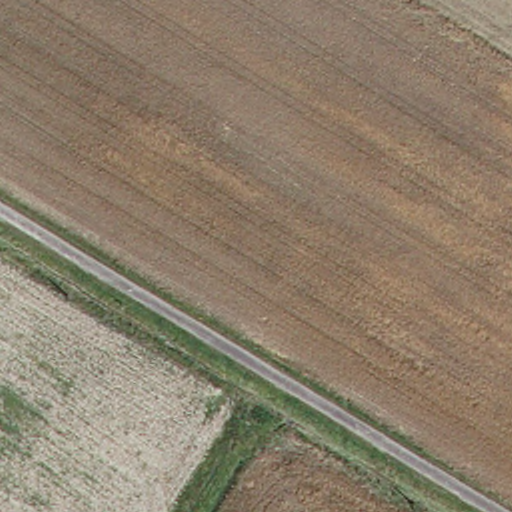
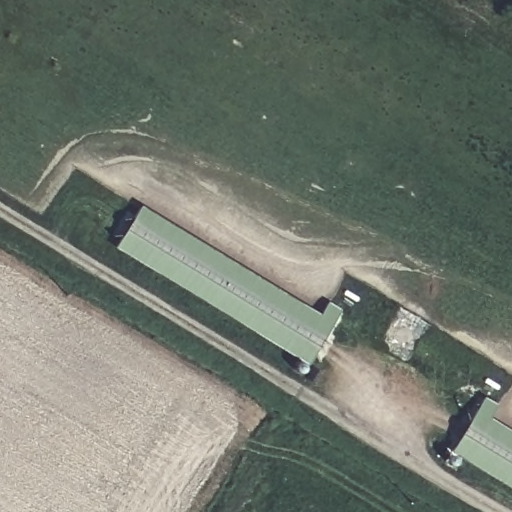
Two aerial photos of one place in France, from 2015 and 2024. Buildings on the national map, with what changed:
new [(146,206),(325,315),(332,303),(346,310),(313,362),(122,245),(146,206)]
new [(484,395),(497,403),(490,415),(512,429),(512,483),(452,447),(484,395)]

